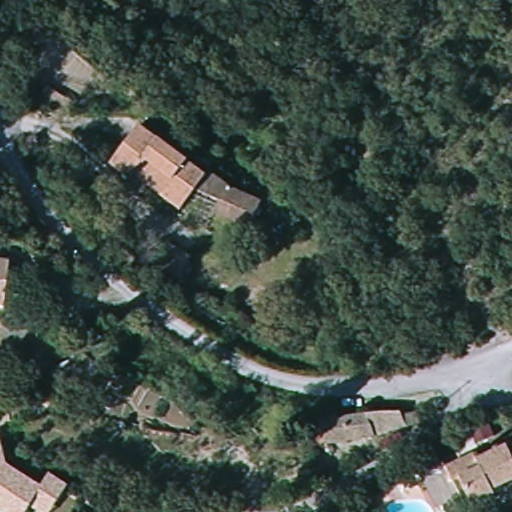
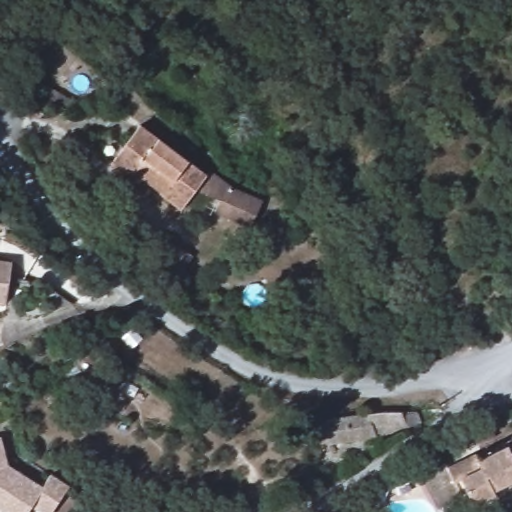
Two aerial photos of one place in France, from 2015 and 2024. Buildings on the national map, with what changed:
unchanged [(115,170),(120,158),(137,131),(208,174),(210,170),(232,182),(265,196),(255,222),(218,210),(222,201),(198,189),(187,213),(168,203),(135,182),(115,170)]
unchanged [(10,267),(5,307),(0,306),(0,262),(2,263),(10,267)]
unchanged [(315,448),(311,422),(394,406),(398,431),(382,434),(382,438),(315,448)]
unchanged [(49,475),(67,486),(52,512),(41,512),(32,507),(28,512),(0,512),(0,438),(7,466),(42,487),(49,475)]
unchanged [(495,498),(473,509),(458,485),(453,488),(444,473),(472,458),(475,464),(503,448),(506,454),(512,451),(512,481),(492,492),(495,498)]

